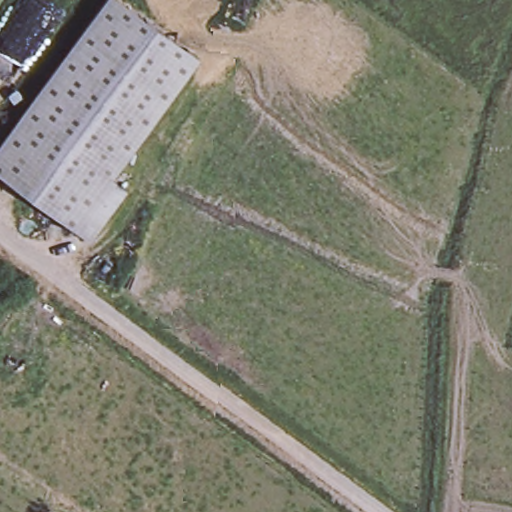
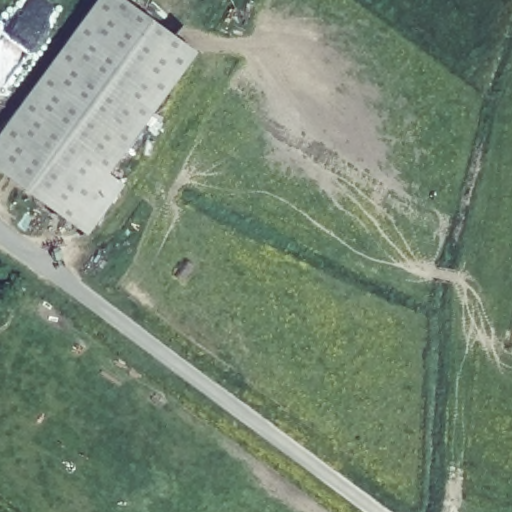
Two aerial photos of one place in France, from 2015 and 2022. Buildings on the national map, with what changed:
unchanged [(197,50),(108,171),(125,183),(89,232),(0,167),(0,137),(101,0),(130,0),(197,50)]

